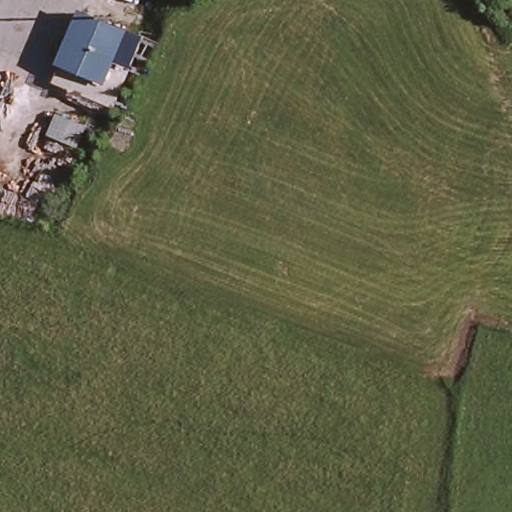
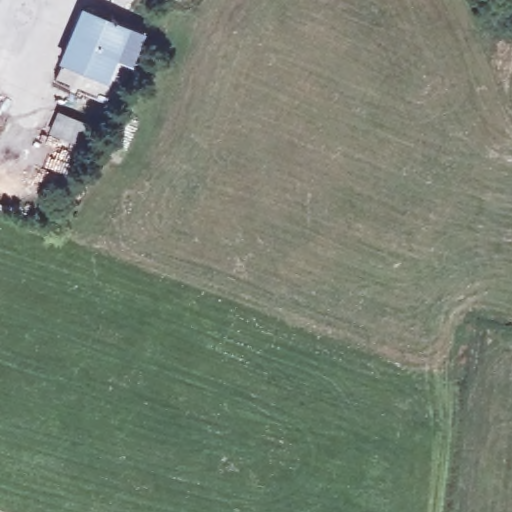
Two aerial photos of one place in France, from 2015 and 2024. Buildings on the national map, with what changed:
unchanged [(112,90),(110,90),(56,67),(83,0),(90,0),(139,20),(140,21),(112,90)]
unchanged [(91,122),(84,139),(57,128),(64,110),(91,122)]

